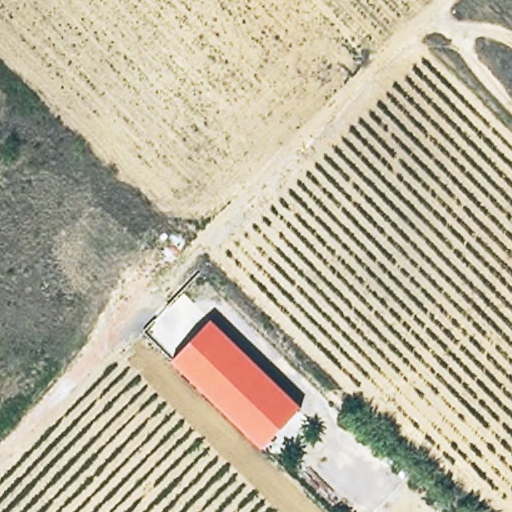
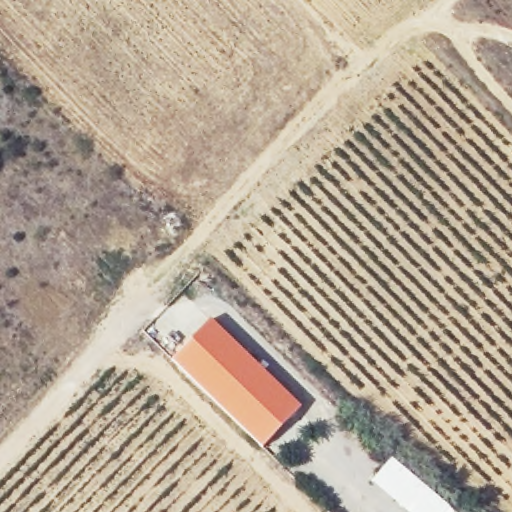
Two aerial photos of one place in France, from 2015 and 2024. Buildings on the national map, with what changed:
unchanged [(207,319),(298,408),(259,448),(168,359),(207,319)]
new [(446,512),(406,512),(370,481),(390,458),(450,508),(446,512)]

